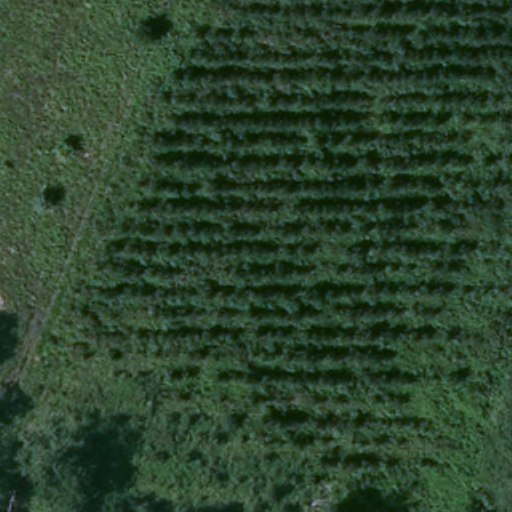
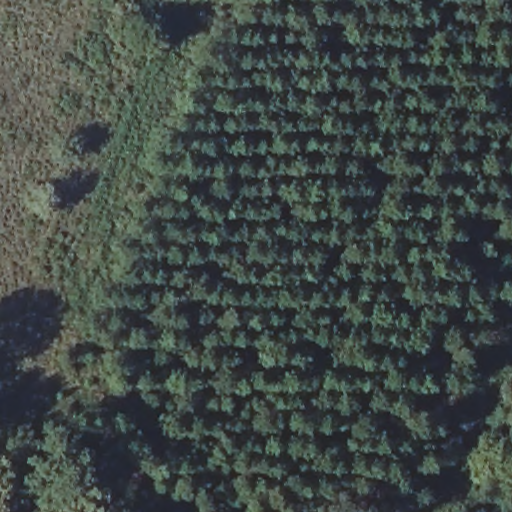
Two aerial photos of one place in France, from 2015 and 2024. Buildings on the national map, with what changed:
[]

